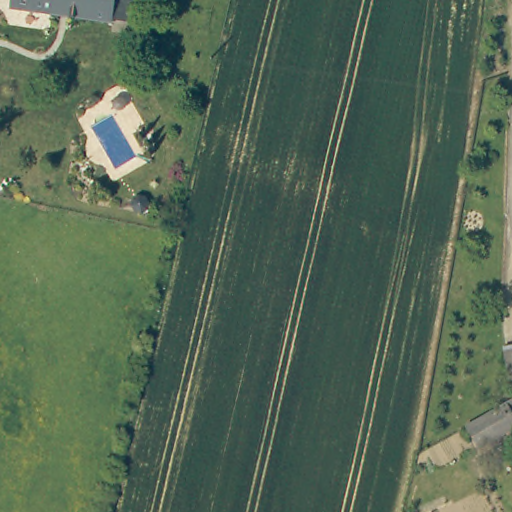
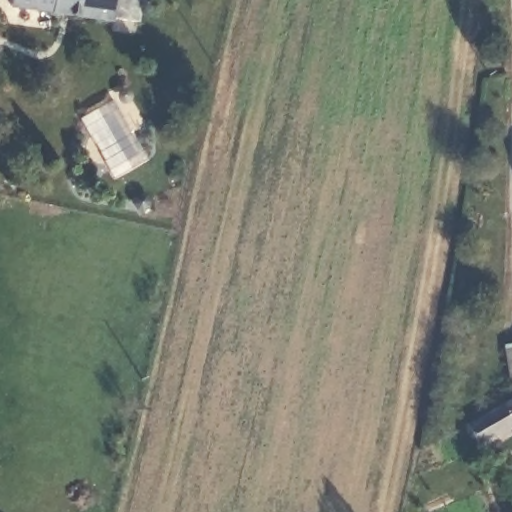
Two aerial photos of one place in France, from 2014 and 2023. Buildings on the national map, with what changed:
unchanged [(115,16),(114,20),(8,6),(9,0),(133,0),(130,17),(115,16)]
unchanged [(502,347),(512,347),(512,375),(504,376),(502,347)]
unchanged [(512,428),(488,446),(471,427),(494,408),(506,399),(512,406),(512,428)]

